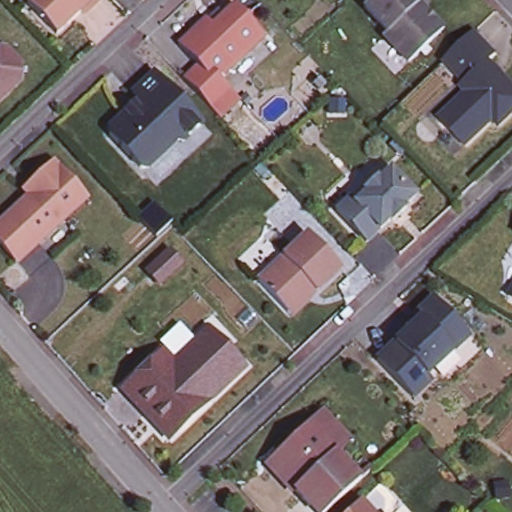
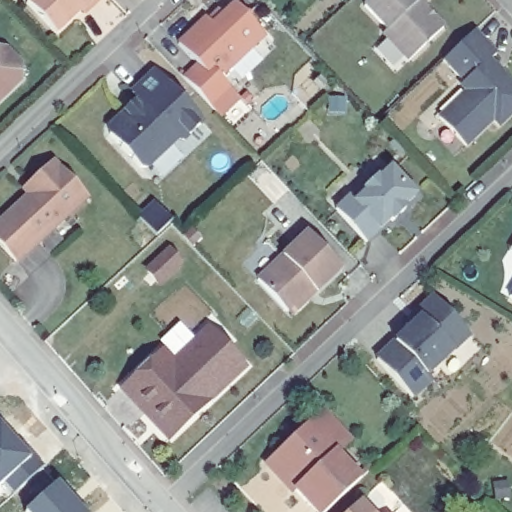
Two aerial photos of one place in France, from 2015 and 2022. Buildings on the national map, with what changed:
unchanged [(25,4),(28,0),(90,0),(55,34),(25,4)]
unchanged [(406,60),(380,35),(386,29),(363,5),(369,0),(415,0),(441,26),(406,60)]
unchanged [(182,79),(196,65),(177,45),(205,18),(211,25),(233,5),(263,36),(220,78),(230,89),(210,109),(182,79)]
unchanged [(497,58),(489,66),(512,90),(512,118),(497,131),(492,125),(465,151),(439,123),(465,98),(460,92),(465,88),(442,65),(473,35),(497,58)]
unchanged [(19,67),(18,82),(0,99),(0,60),(6,66),(19,67)]
unchanged [(200,122),(183,140),(174,139),(142,170),(108,136),(108,127),(137,100),(132,95),(152,74),(200,122)]
new [(347,101),(347,117),(325,117),(326,100),(347,101)]
unchanged [(13,261),(0,246),(0,216),(24,194),(20,189),(27,181),(50,160),(85,197),(37,242),(35,240),(13,261)]
unchanged [(402,206),(405,208),(392,220),(390,218),(366,241),(335,210),(348,196),(355,202),(364,192),(362,190),(375,177),(378,180),(390,167),(415,194),(402,206)]
unchanged [(153,235),(137,217),(150,205),(152,204),(169,221),(168,222),(154,236),(153,235)]
unchanged [(287,312),(257,281),(306,233),(340,267),(315,291),(290,315),(287,312)]
unchanged [(158,283),(147,271),(168,250),(180,262),(158,283)]
unchanged [(509,301),(512,297),(512,303),(509,301)]
unchanged [(442,306),(473,339),(430,380),(435,385),(417,402),(380,366),(413,334),(409,330),(423,316),(432,307),(442,306)]
unchanged [(145,415),(120,389),(160,351),(172,363),(206,330),(242,368),(175,433),(168,440),(145,415)]
unchanged [(326,512),(304,512),(288,496),(292,492),(283,483),(273,484),(259,470),(315,417),(343,445),(330,460),(355,485),(326,512)]
new [(39,463),(15,490),(4,477),(0,480),(0,422),(1,421),(39,463)]
new [(89,512),(33,512),(29,507),(61,478),(89,512)]
new [(507,485),(509,500),(495,502),(492,485),(507,485)]
unchanged [(358,501),(370,512),(347,512),(358,501)]

